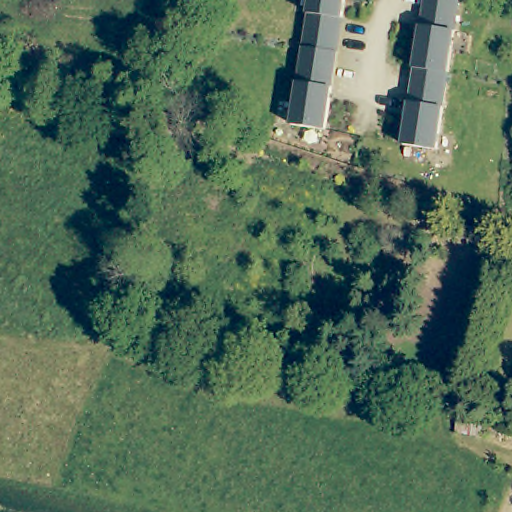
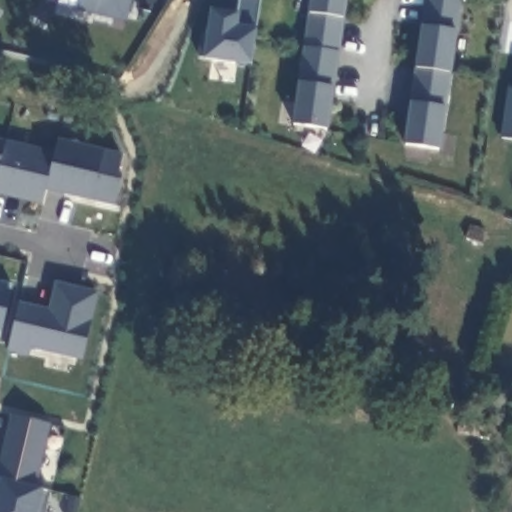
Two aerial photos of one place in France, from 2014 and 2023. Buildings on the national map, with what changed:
new [(125,21),(75,10),(78,0),(131,0),(125,21)]
new [(258,26),(254,65),(202,59),(209,9),(238,11),(238,0),(260,0),(258,26)]
unchanged [(324,132),(291,127),(310,0),(344,0),(324,132)]
unchanged [(436,153),(403,148),(424,0),(458,0),(436,153)]
new [(501,138),(508,86),(512,87),(512,140),(501,138)]
new [(118,170),(121,175),(114,205),(45,190),(54,152),(57,139),(121,153),(118,170)]
new [(0,140),(4,141),(0,166),(0,140)]
new [(0,166),(4,141),(54,152),(42,205),(0,194),(0,166)]
new [(82,360),(31,348),(28,356),(5,351),(17,301),(48,307),(54,282),(99,291),(82,360)]
new [(0,333),(0,285),(12,287),(2,333),(0,333)]
new [(50,423),(36,485),(51,488),(46,512),(0,512),(0,460),(9,415),(50,423)]

